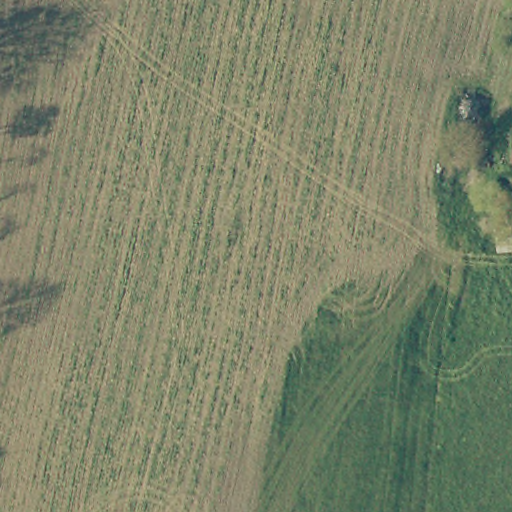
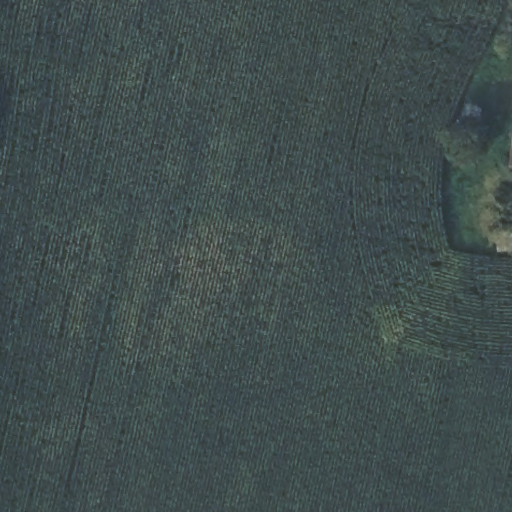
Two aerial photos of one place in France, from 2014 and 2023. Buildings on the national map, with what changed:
unchanged [(512,251),(497,252),(496,229),(512,229),(512,251)]

